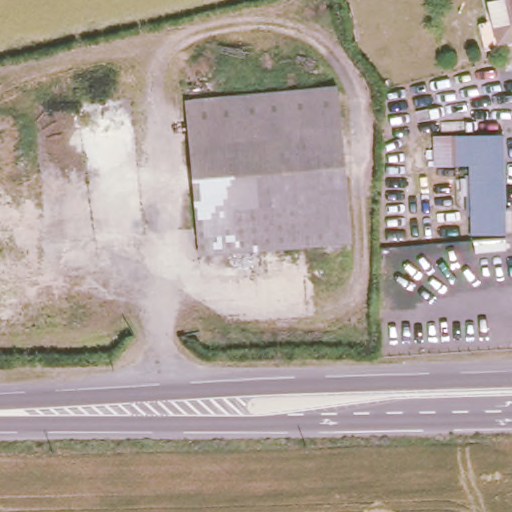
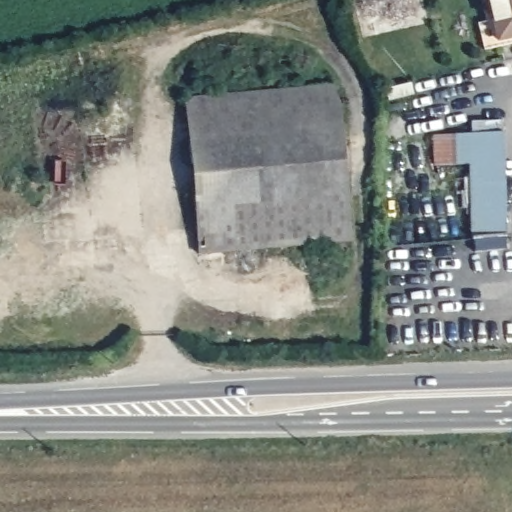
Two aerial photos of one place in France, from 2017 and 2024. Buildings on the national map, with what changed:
unchanged [(493,35),(485,0),(512,0),(512,31),(493,35)]
unchanged [(336,85),(350,239),(200,253),(185,98),(336,85)]
unchanged [(504,128),(505,232),(472,234),(470,160),(435,160),(435,129),(504,128)]

